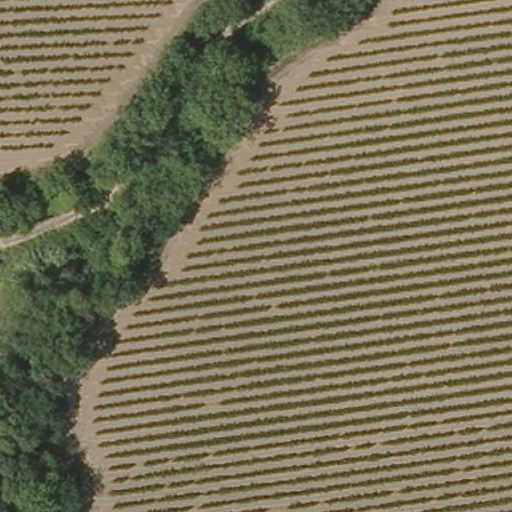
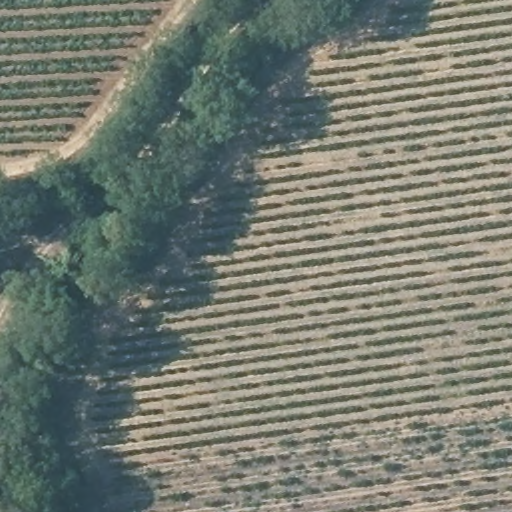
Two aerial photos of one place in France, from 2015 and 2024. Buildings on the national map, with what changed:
unchanged [(42,182),(69,174),(78,203),(55,208),(42,182)]

